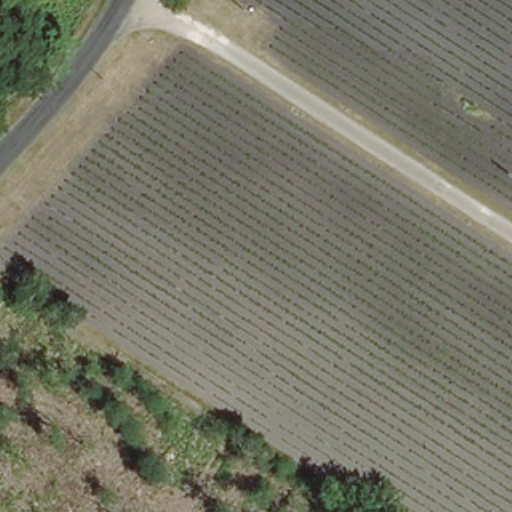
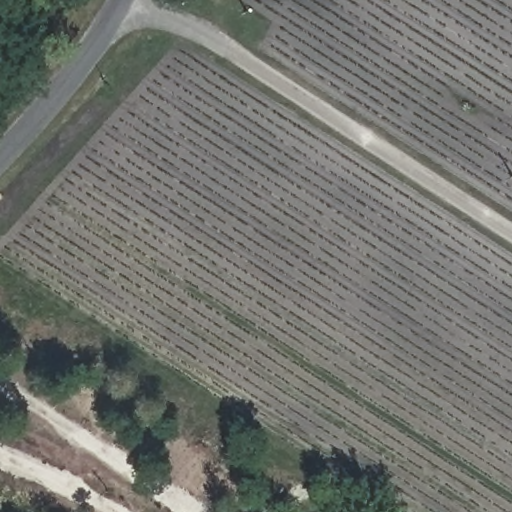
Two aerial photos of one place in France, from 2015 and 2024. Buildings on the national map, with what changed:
[]

